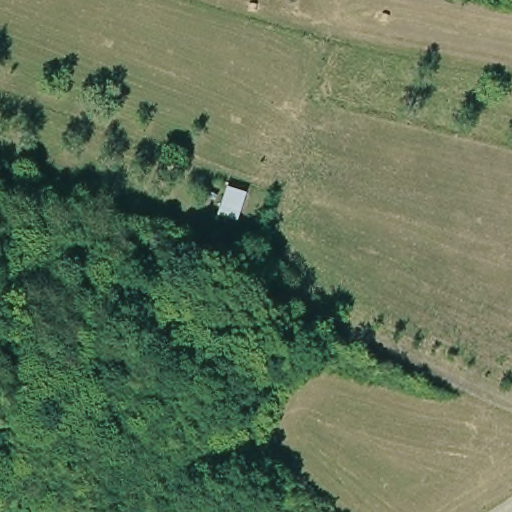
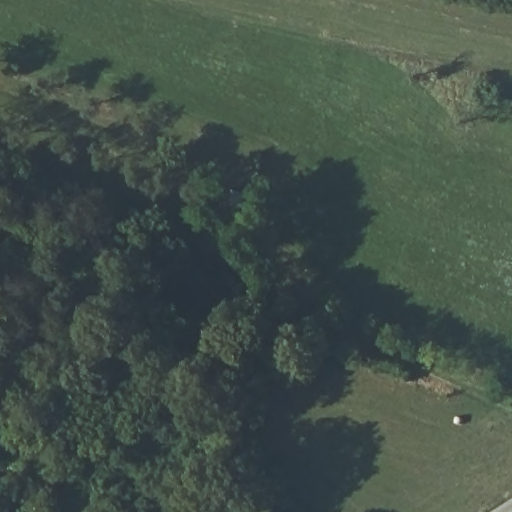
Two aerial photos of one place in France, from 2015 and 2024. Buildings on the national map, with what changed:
unchanged [(248,194),(238,227),(213,220),(223,188),(248,194)]

